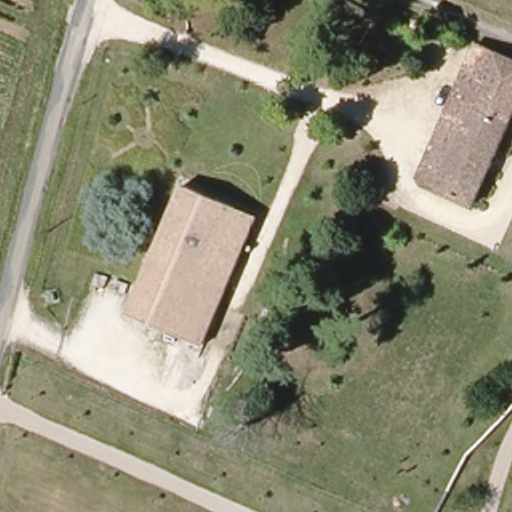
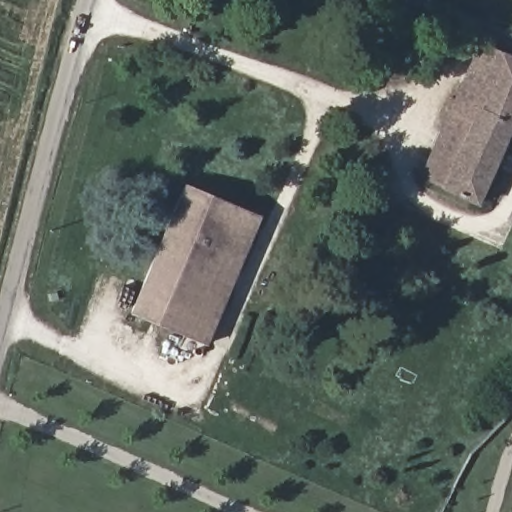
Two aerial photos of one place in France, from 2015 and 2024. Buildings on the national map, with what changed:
unchanged [(454,109),(485,42),(512,55),(512,132),(482,205),(446,187),(476,120),(454,109)]
unchanged [(422,176),(430,160),(454,109),(476,120),(446,187),(422,176)]
unchanged [(204,343),(130,312),(182,180),(260,213),(204,343)]

